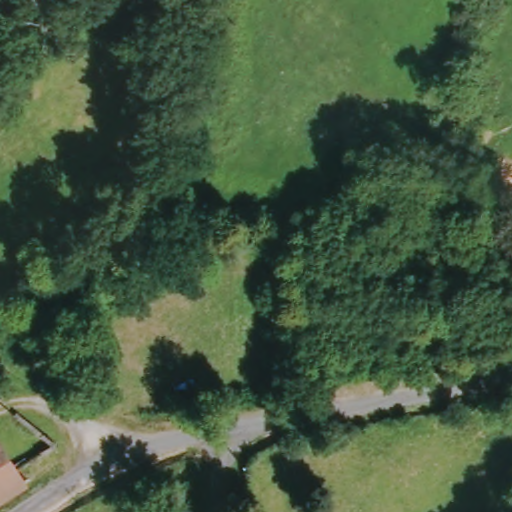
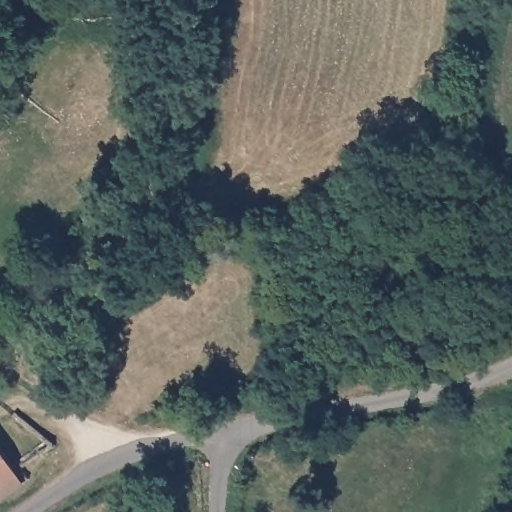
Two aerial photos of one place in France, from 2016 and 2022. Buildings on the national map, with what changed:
unchanged [(9,469),(18,464),(27,476),(0,493),(0,459),(9,469)]

